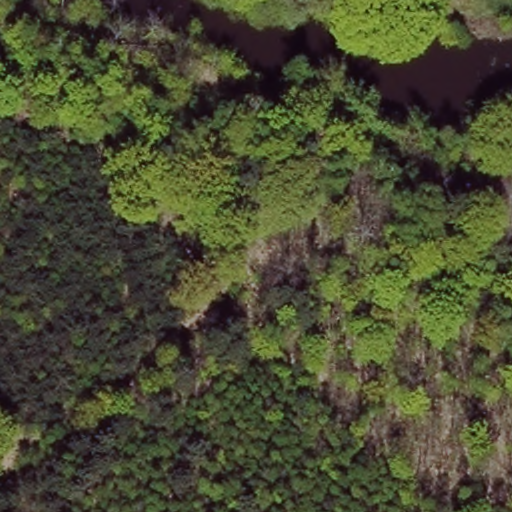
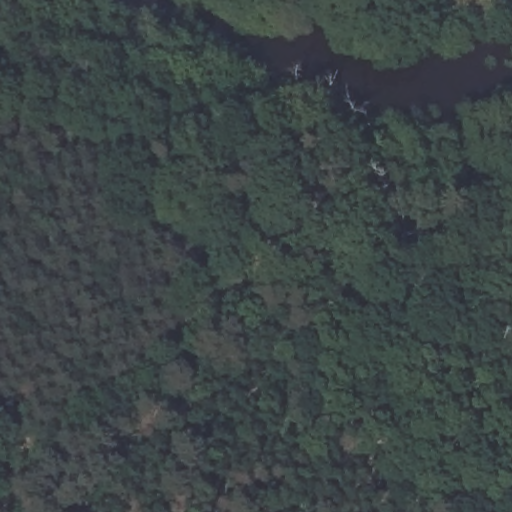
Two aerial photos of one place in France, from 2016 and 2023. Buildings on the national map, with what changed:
[]

